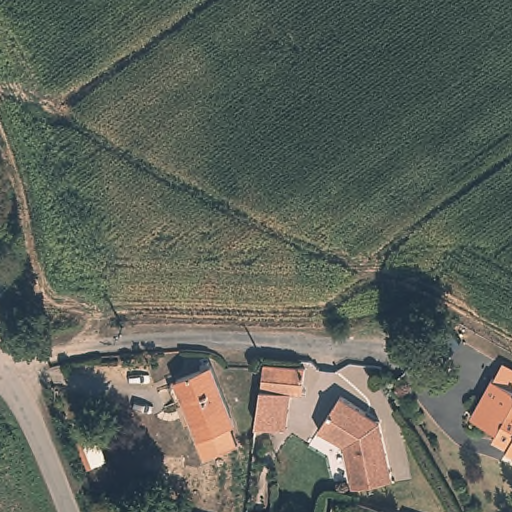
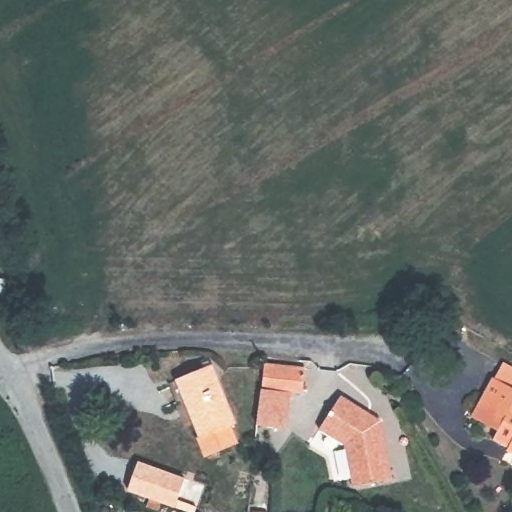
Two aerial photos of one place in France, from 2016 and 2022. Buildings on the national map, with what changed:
unchanged [(461,341),(448,356),(430,331),(443,317),(461,341)]
unchanged [(204,354),(201,350),(209,346),(211,351),(235,408),(230,410),(238,429),(205,442),(197,423),(200,422),(176,365),(204,354)]
unchanged [(508,443),(492,435),(497,426),(471,412),(492,372),(495,374),(503,358),(512,363),(512,449),(506,446),(508,443)]
unchanged [(305,368),(302,395),(290,394),(261,390),(265,364),(305,368)]
unchanged [(290,394),(286,429),(256,425),(261,390),(290,394)]
unchanged [(380,421),(392,480),(353,487),(344,445),(318,430),(341,396),(380,421)]
new [(138,461),(185,477),(175,508),(127,492),(138,461)]
unchanged [(252,512),(252,511),(263,512),(252,512)]

